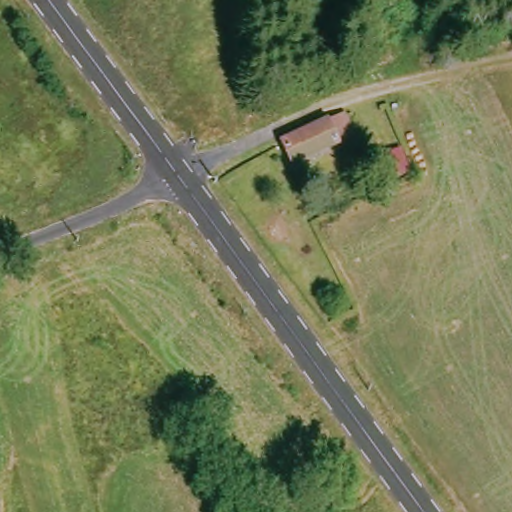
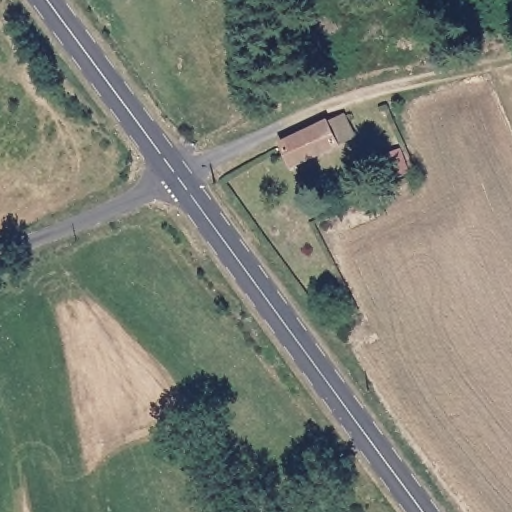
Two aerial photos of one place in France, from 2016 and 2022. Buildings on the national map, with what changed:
unchanged [(270,145),(315,122),(331,115),(339,135),(325,142),(281,165),(270,145)]
unchanged [(414,165),(386,179),(378,162),(392,156),(388,149),(402,141),(414,165)]

